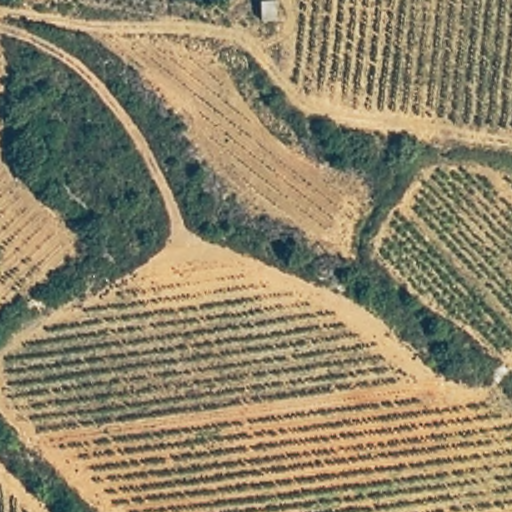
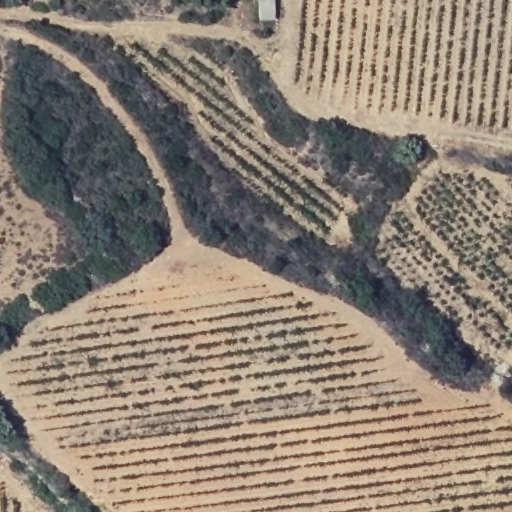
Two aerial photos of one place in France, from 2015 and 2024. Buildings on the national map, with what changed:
unchanged [(273,2),(273,20),(261,21),(259,1),(273,2)]

